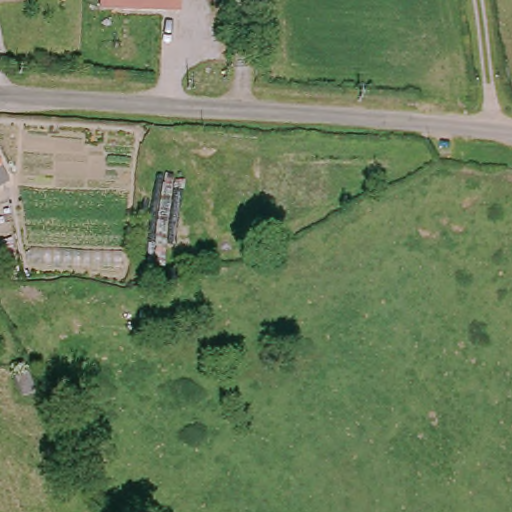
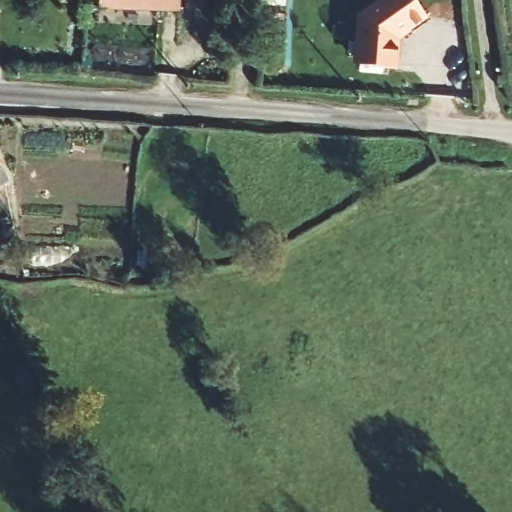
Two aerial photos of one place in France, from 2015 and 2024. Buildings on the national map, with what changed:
unchanged [(179,14),(100,12),(100,0),(179,0),(179,14)]
new [(394,71),(358,70),(355,61),(355,19),(379,0),(408,0),(425,21),(408,34),(407,32),(395,41),(394,71)]
demolished [(5,167),(0,170),(0,157),(5,167)]
new [(7,185),(0,189),(0,171),(7,185)]

